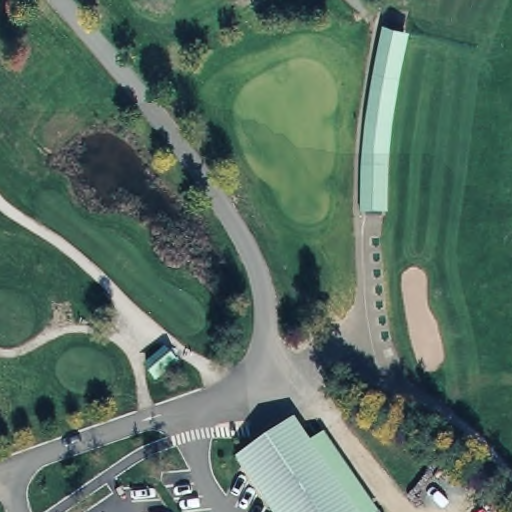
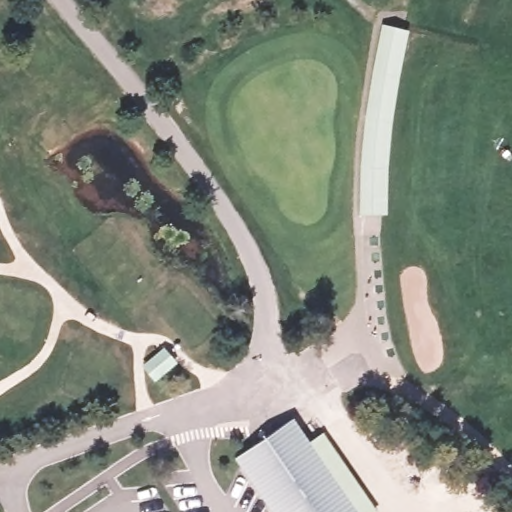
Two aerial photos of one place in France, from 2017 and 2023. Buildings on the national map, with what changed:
unchanged [(353,207),(356,150),(361,92),(377,22),(407,25),(396,91),(392,150),(392,194),(387,213),(353,207)]
unchanged [(300,407),(307,402),(335,442),(383,512),(370,512),(328,450),(300,407)]
unchanged [(324,450),(365,512),(354,512),(317,457),(289,415),(296,410),(324,450)]
unchanged [(229,453),(289,415),(317,457),(354,512),(268,512),(229,453)]

